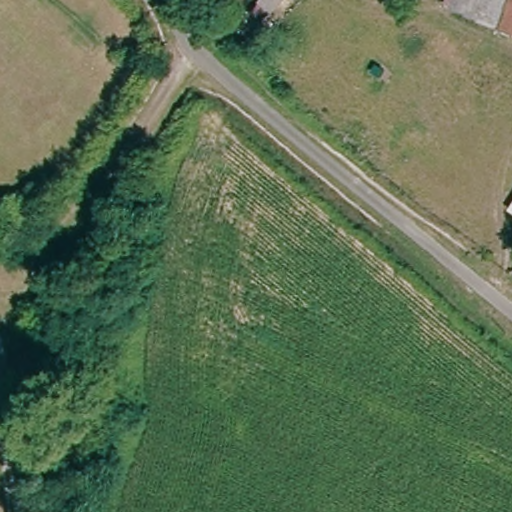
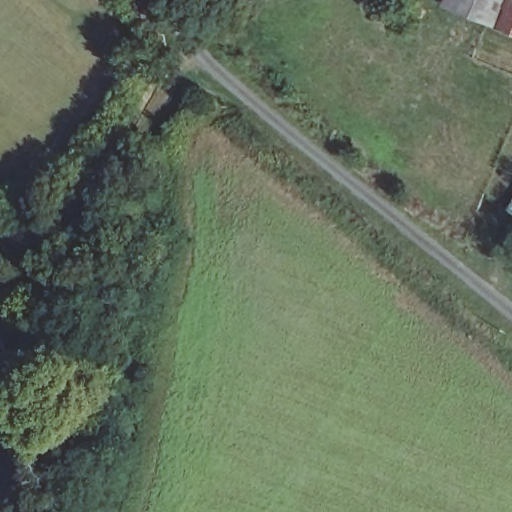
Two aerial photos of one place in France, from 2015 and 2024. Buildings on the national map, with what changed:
unchanged [(435,5),(436,0),(512,0),(512,39),(435,5)]

